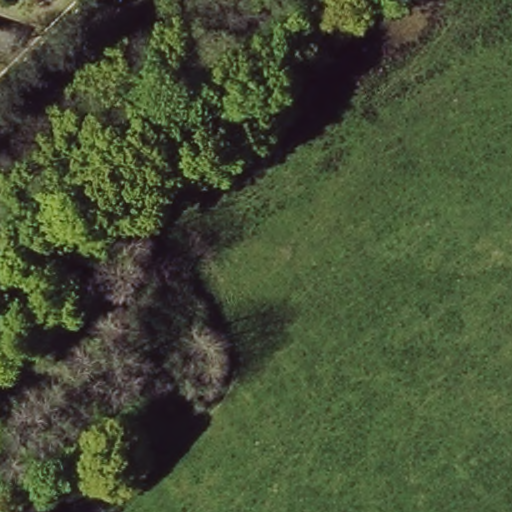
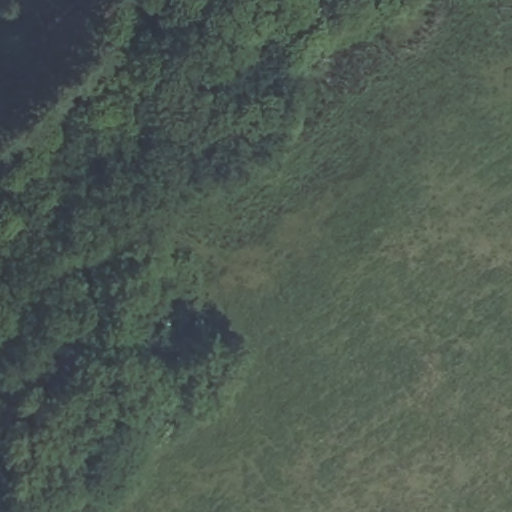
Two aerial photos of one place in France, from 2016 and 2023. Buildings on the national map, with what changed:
unchanged [(18,36),(17,41),(13,52),(7,50),(0,48),(0,30),(18,36)]

